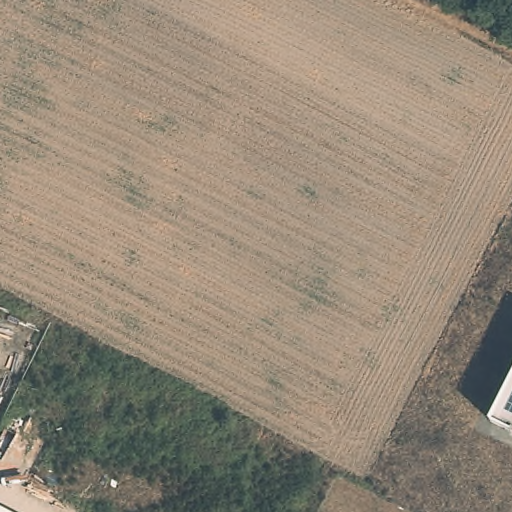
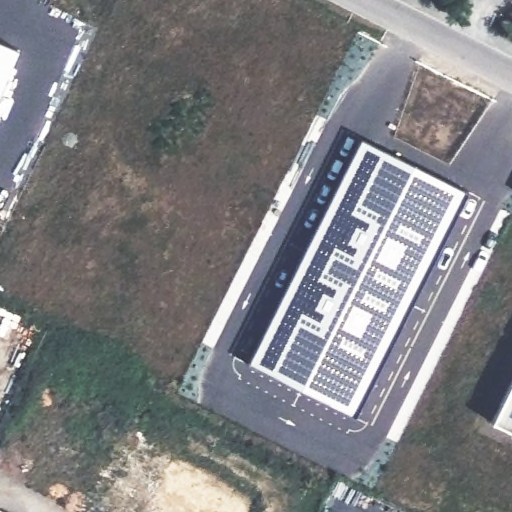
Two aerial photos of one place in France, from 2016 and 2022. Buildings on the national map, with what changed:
new [(0,93),(0,42),(18,50),(0,93)]
new [(359,139),(468,194),(355,418),(246,364),(359,139)]
unchanged [(491,422),(512,380),(512,433),(491,422)]

